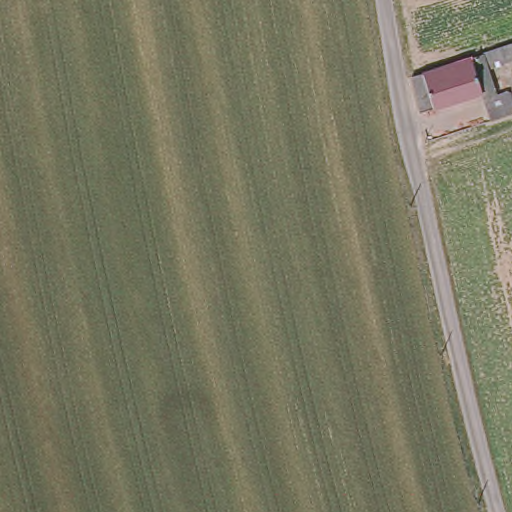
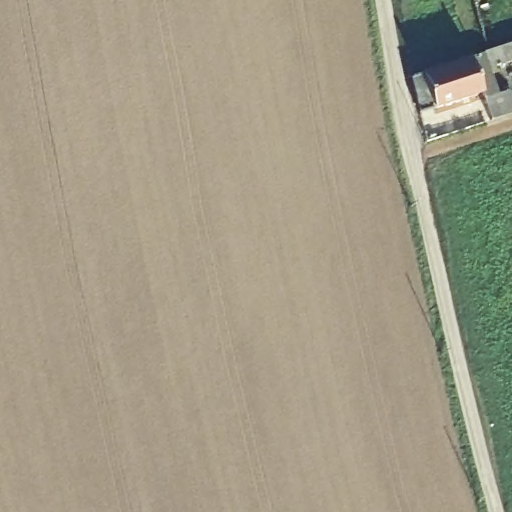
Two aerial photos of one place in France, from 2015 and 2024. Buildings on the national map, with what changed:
unchanged [(495,97),(507,94),(512,111),(512,116),(487,125),(478,97),(417,117),(408,80),(483,54),(495,97)]

